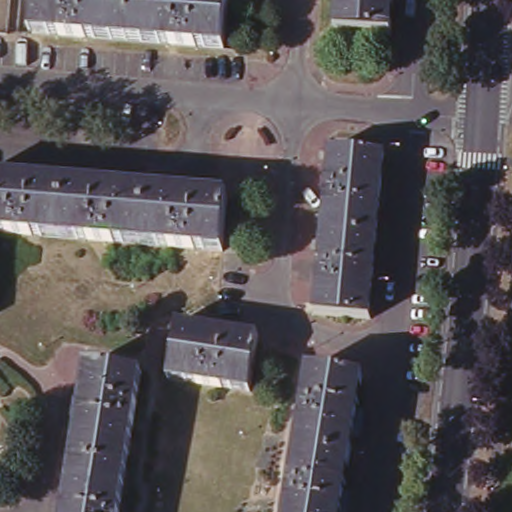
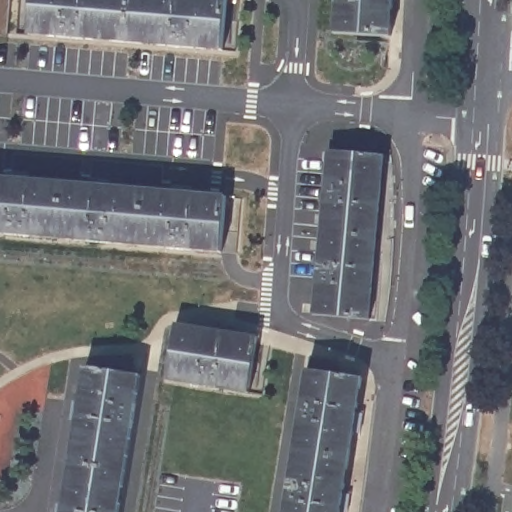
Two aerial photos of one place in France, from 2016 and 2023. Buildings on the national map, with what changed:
unchanged [(223,46),(30,30),(33,0),(227,0),(223,46)]
unchanged [(335,32),(337,0),(393,0),(391,35),(335,32)]
unchanged [(319,245),(320,236),(322,218),(322,210),(328,152),(329,144),(384,149),(383,161),(370,296),(369,312),(313,307),(314,300),(319,245)]
unchanged [(0,231),(0,176),(221,194),(216,248),(53,235),(0,231)]
unchanged [(256,332),(245,390),(165,376),(174,319),(242,329),(256,332)]
unchanged [(140,373),(116,512),(65,512),(90,365),(140,373)]
unchanged [(338,512),(282,512),(305,367),(360,376),(338,512)]

